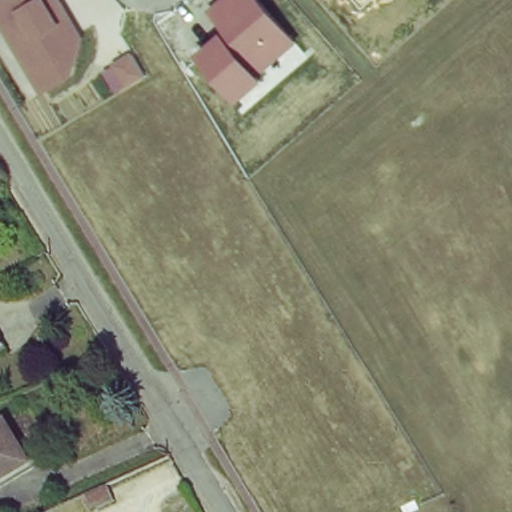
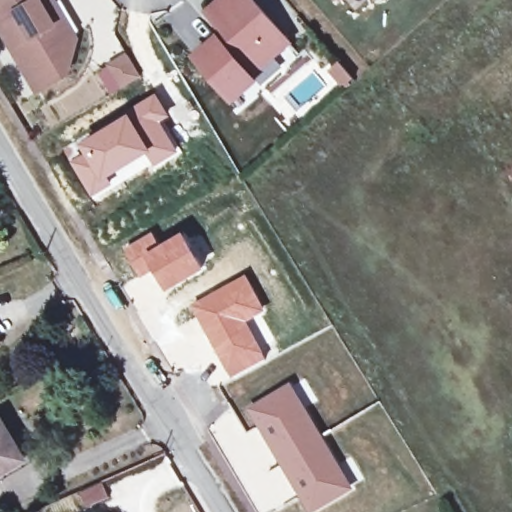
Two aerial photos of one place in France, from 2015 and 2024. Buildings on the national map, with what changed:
unchanged [(81,35),(72,76),(37,100),(0,32),(0,0),(59,0),(81,35)]
unchanged [(221,32),(206,16),(223,0),(260,0),(298,42),(259,75),(264,80),(234,105),(194,56),(221,32)]
new [(126,50),(141,76),(110,94),(96,70),(126,50)]
new [(83,149),(79,143),(119,119),(158,91),(172,116),(163,121),(181,151),(154,167),(148,157),(141,161),(143,165),(112,179),(115,185),(91,199),(67,156),(83,149)]
new [(154,230),(162,243),(185,230),(207,268),(168,292),(155,270),(140,278),(122,248),(154,230)]
new [(247,272),(267,310),(249,320),(268,357),(231,377),(190,304),(247,272)]
unchanged [(1,343),(0,343),(0,342),(1,343)]
new [(350,486),(314,508),(253,410),(289,387),(350,486)]
unchanged [(28,460),(0,478),(0,421),(2,420),(28,460)]

